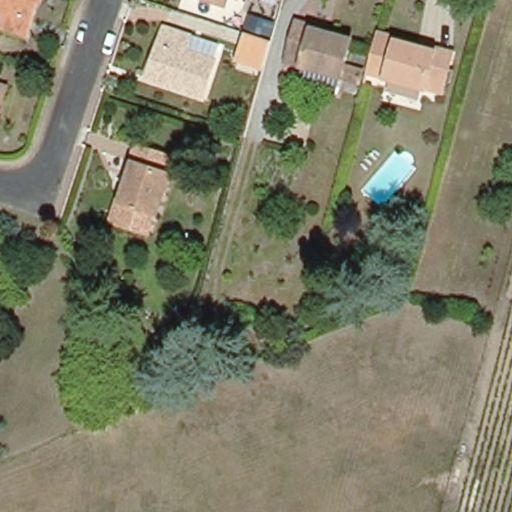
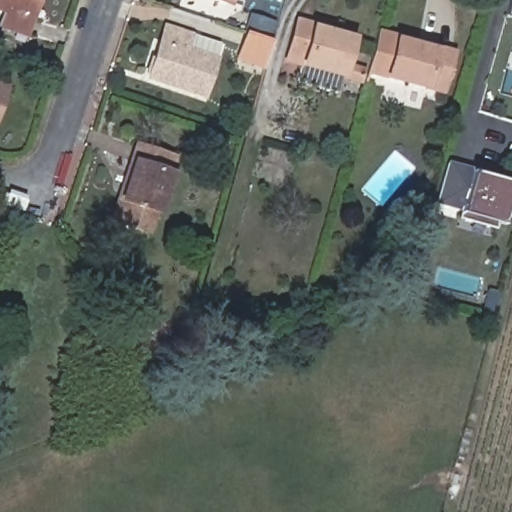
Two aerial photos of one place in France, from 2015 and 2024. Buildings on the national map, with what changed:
unchanged [(26,33),(0,25),(0,22),(5,9),(0,8),(0,0),(37,0),(26,33)]
unchanged [(227,2),(219,0),(227,0),(227,2)]
unchanged [(315,23),(315,26),(351,35),(343,72),(302,63),(302,60),(288,57),(297,18),(315,23)]
unchanged [(220,58),(207,99),(146,81),(165,24),(196,33),(191,49),(220,58)]
unchanged [(378,28),(399,34),(398,37),(432,48),(433,44),(453,50),(442,88),(426,83),(425,85),(367,68),(378,28)]
unchanged [(239,57),(247,30),(272,38),(265,66),(239,57)]
unchanged [(0,102),(0,81),(6,82),(0,102)]
unchanged [(175,158),(170,174),(172,176),(158,213),(121,201),(134,165),(130,163),(137,146),(175,158)]
new [(505,225),(498,223),(497,229),(458,219),(461,213),(436,206),(447,163),(471,170),(512,183),(512,195),(505,225)]

